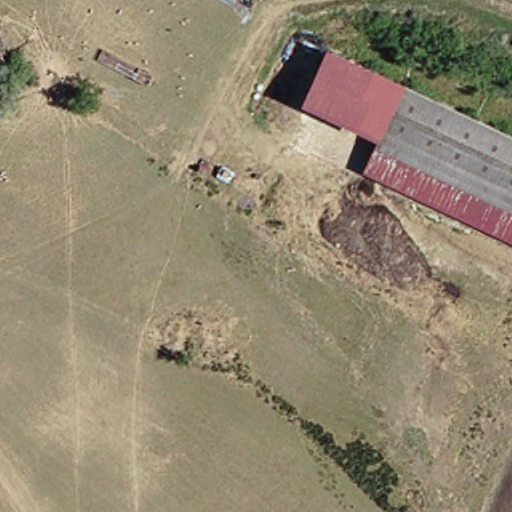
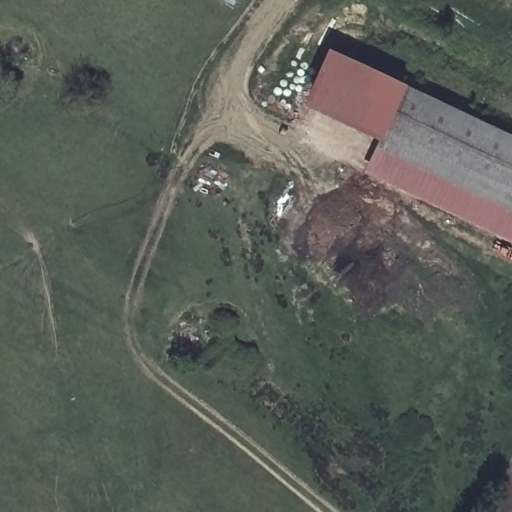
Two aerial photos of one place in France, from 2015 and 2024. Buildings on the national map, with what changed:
unchanged [(305,104),(330,47),(408,85),(387,137),(305,104)]
unchanged [(387,137),(408,85),(512,133),(512,227),(395,169),(401,152),(383,147),(387,137)]

